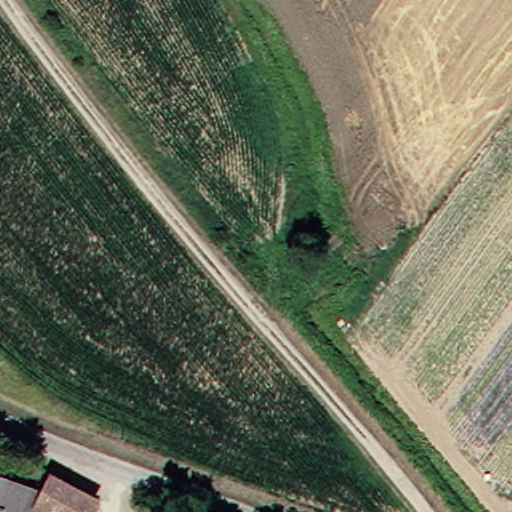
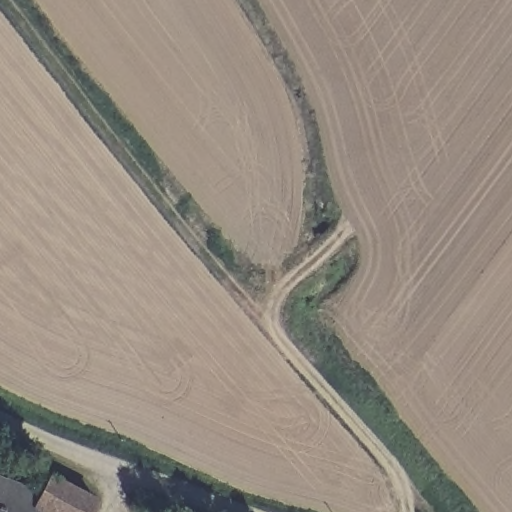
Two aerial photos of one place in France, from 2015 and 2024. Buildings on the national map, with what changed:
unchanged [(40,493),(46,475),(88,492),(77,512),(34,512),(31,511),(9,503),(5,512),(0,512),(0,478),(40,493)]
unchanged [(31,511),(31,512),(5,512),(9,503),(31,511)]

